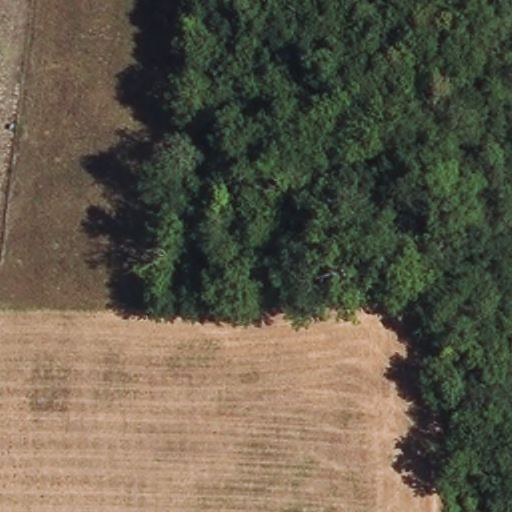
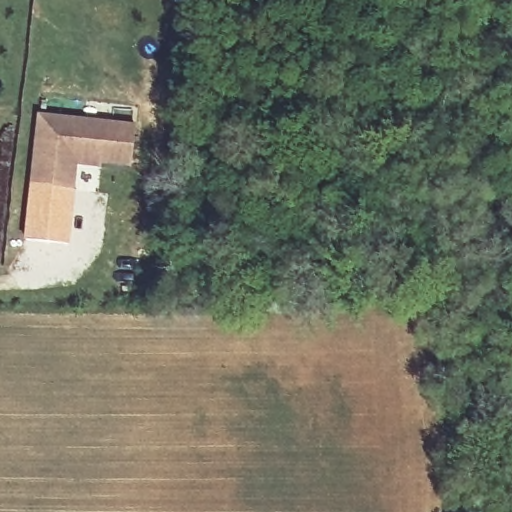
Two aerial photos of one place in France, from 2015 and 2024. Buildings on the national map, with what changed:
new [(38,113),(136,125),(131,168),(78,163),(75,190),(29,185),(38,113)]

